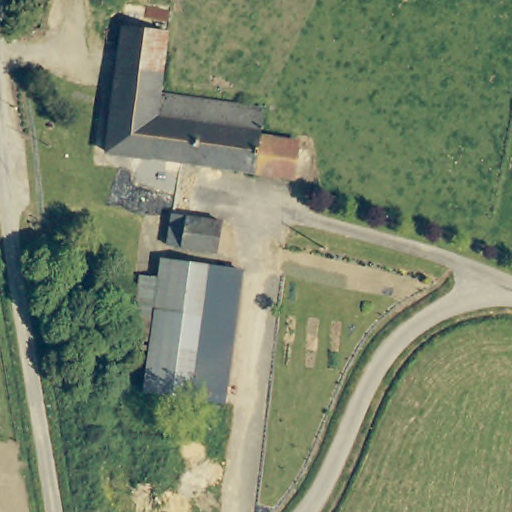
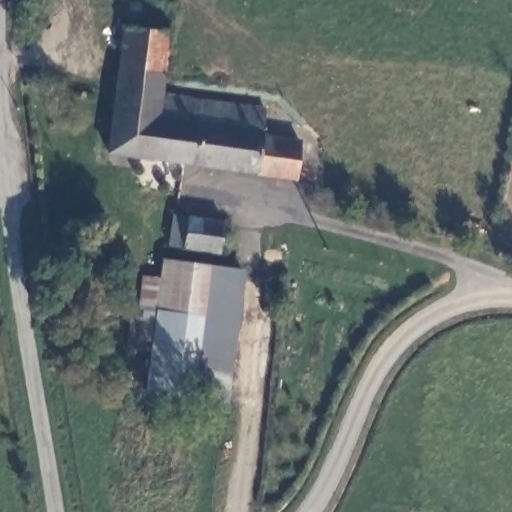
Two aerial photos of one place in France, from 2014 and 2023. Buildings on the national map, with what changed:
unchanged [(171,29),(164,88),(117,82),(125,22),(171,29)]
unchanged [(164,88),(266,103),(264,130),(300,135),(295,175),(109,148),(117,82),(164,88)]
unchanged [(221,220),(215,251),(166,244),(171,213),(221,220)]
unchanged [(148,309),(139,309),(143,275),(159,277),(162,255),(241,266),(224,398),(145,387),(150,350),(125,347),(128,318),(146,320),(148,309)]

